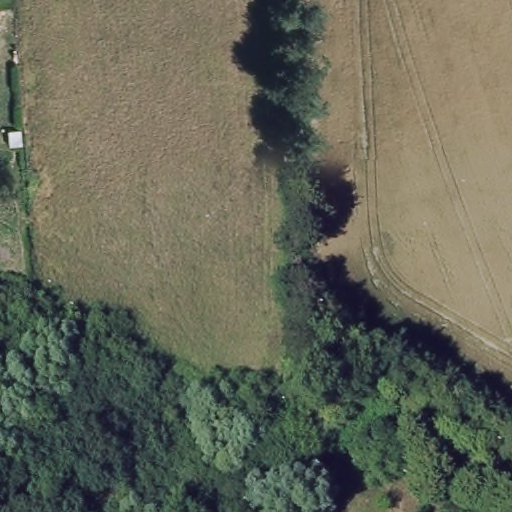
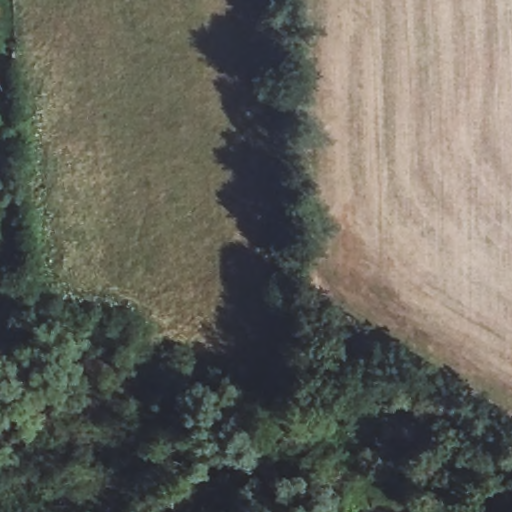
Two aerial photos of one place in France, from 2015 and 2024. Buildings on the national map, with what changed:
unchanged [(377,473),(387,449),(404,456),(393,480),(377,473)]

